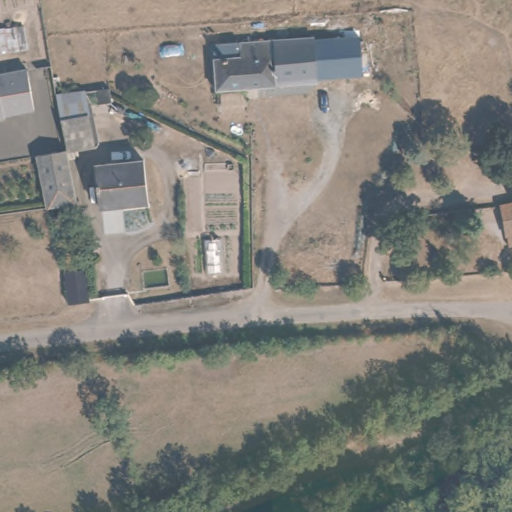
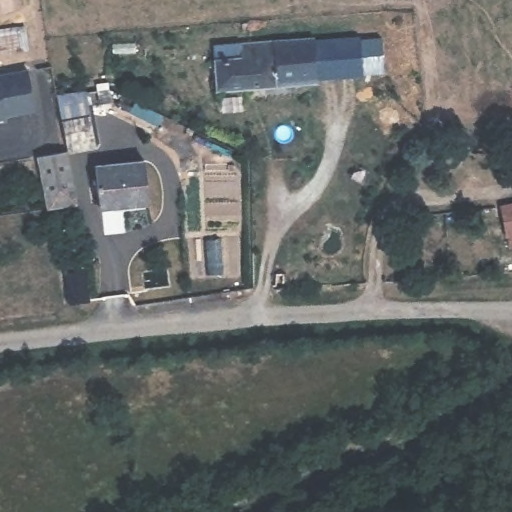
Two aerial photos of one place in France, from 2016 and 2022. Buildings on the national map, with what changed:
unchanged [(372,34),(377,80),(363,81),(353,82),(348,35),(372,34)]
unchanged [(201,47),(202,43),(205,39),(207,38),(212,38),(215,38),(217,39),(219,42),(220,46),(221,54),(236,53),(236,44),(303,39),(325,38),(348,35),(353,82),(329,84),(307,85),(242,89),(204,91),(201,47)]
unchanged [(28,110),(1,114),(1,118),(0,118),(0,72),(24,69),(28,110)]
unchanged [(89,91),(92,110),(58,114),(56,94),(89,91)]
unchanged [(86,148),(65,151),(59,125),(81,123),(86,148)]
unchanged [(65,151),(76,204),(46,209),(37,155),(65,151)]
unchanged [(146,158),(150,200),(100,205),(96,163),(146,158)]
unchanged [(512,252),(504,253),(490,209),(512,206),(512,252)]
unchanged [(68,274),(73,308),(54,309),(50,276),(68,274)]

